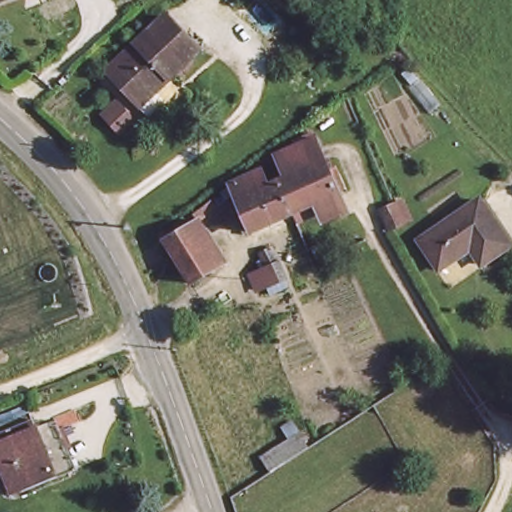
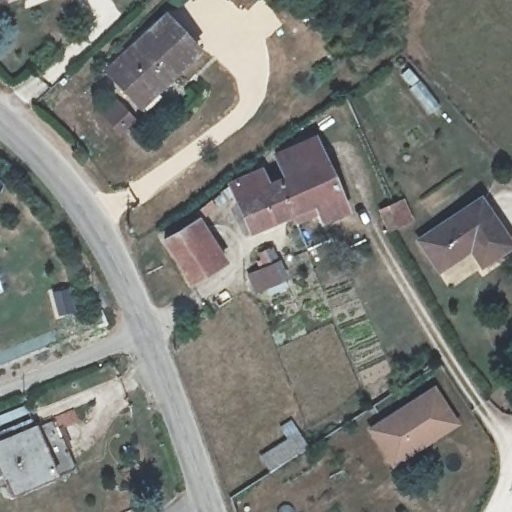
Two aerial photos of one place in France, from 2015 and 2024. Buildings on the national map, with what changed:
unchanged [(134,95),(109,69),(164,16),(196,49),(167,76),(141,101),(134,95)]
unchanged [(317,135),(347,205),(333,212),(327,204),(301,213),(285,172),(277,150),(317,135)]
unchanged [(257,229),(237,179),(261,171),(265,179),(285,172),(301,213),(257,229)]
unchanged [(510,242),(482,260),(470,242),(441,260),(423,233),(480,197),(510,242)]
unchanged [(413,224),(395,232),(385,211),(405,202),(413,224)]
unchanged [(200,218),(228,263),(206,277),(198,283),(169,236),(200,218)]
unchanged [(262,302),(253,279),(258,278),(251,262),(268,257),(283,296),(262,302)]
new [(435,385),(460,425),(392,467),(368,429),(435,385)]
unchanged [(11,493),(4,478),(0,470),(0,438),(49,420),(70,469),(11,493)]
unchanged [(4,478),(0,479),(0,470),(4,478)]

